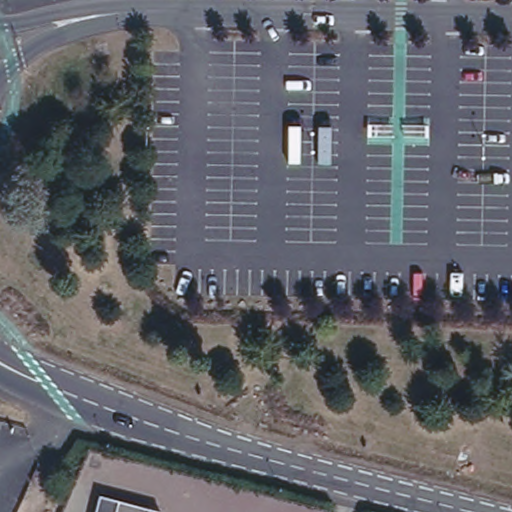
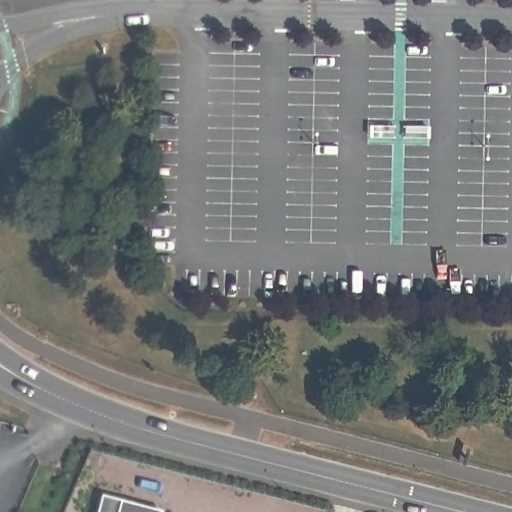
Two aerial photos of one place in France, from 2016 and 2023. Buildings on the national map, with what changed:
unchanged [(159,512),(96,512),(100,497),(119,502),(159,512)]

